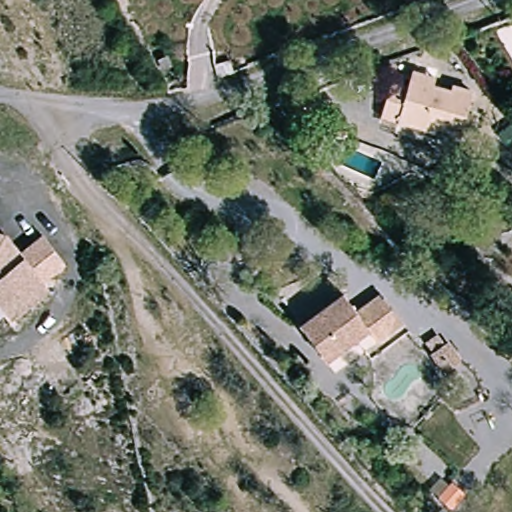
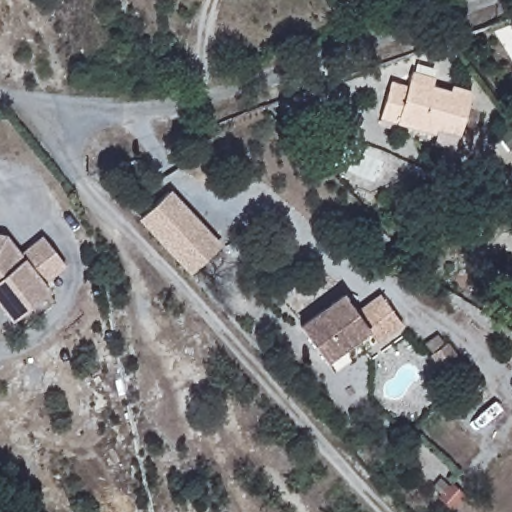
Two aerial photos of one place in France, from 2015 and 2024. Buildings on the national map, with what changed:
unchanged [(443,115),(440,122),(388,109),(396,75),(414,79),(415,70),(418,61),(441,67),(439,76),(458,80),(460,73),(479,77),(468,121),(465,137),(439,131),(443,115)]
unchanged [(482,169),(461,161),(465,146),(488,155),(482,169)]
new [(169,190),(221,244),(190,273),(139,218),(169,190)]
unchanged [(44,285),(48,291),(9,320),(0,308),(0,234),(5,235),(20,252),(41,236),(66,266),(44,285)]
unchanged [(406,324),(381,343),(372,331),(330,362),(303,328),(346,297),(358,313),(383,295),(406,324)]
unchanged [(462,349),(444,362),(431,345),(448,332),(462,349)]

